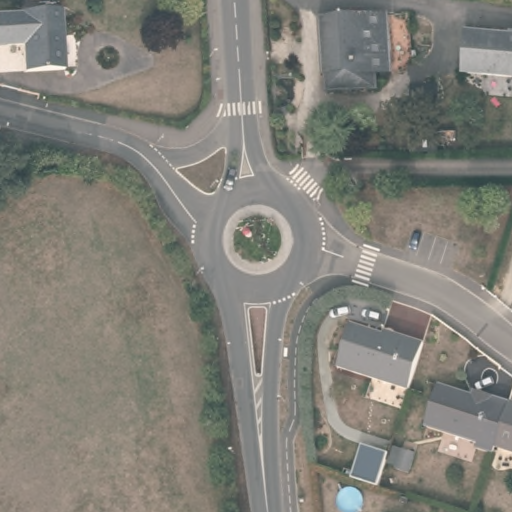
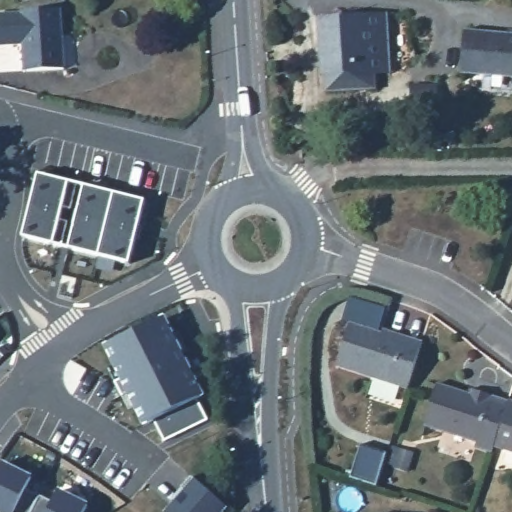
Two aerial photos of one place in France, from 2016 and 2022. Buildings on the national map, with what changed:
unchanged [(19,23),(20,15),(59,14),(61,71),(20,71),(19,48),(0,48),(0,24),(19,23)]
unchanged [(390,18),(391,84),(375,83),(375,62),(365,61),(364,19),(390,18)]
unchanged [(365,61),(375,62),(375,83),(375,94),(348,94),(347,78),(325,78),(323,19),(364,19),(365,61)]
unchanged [(512,83),(459,79),(460,33),(512,37),(512,83)]
new [(411,86),(437,86),(437,105),(411,105),(411,86)]
new [(411,132),(437,132),(436,152),(411,152),(411,132)]
new [(22,237),(36,173),(144,200),(127,265),(22,237)]
new [(164,316),(203,395),(196,398),(206,419),(164,441),(153,420),(141,426),(103,345),(164,316)]
unchanged [(335,372),(347,331),(378,341),(380,335),(422,348),(407,395),(335,372)]
unchanged [(491,458),(470,451),(473,443),(428,430),(441,391),(466,400),(469,391),(486,396),(509,403),(493,452),(491,458)]
unchanged [(512,458),(493,452),(509,403),(512,404),(512,458)]
new [(361,445),(388,453),(377,486),(351,478),(361,445)]
new [(1,462),(30,476),(25,489),(52,501),(59,490),(87,503),(83,512),(0,512),(0,464),(1,462)]
new [(193,479),(226,509),(223,512),(165,512),(193,479)]

